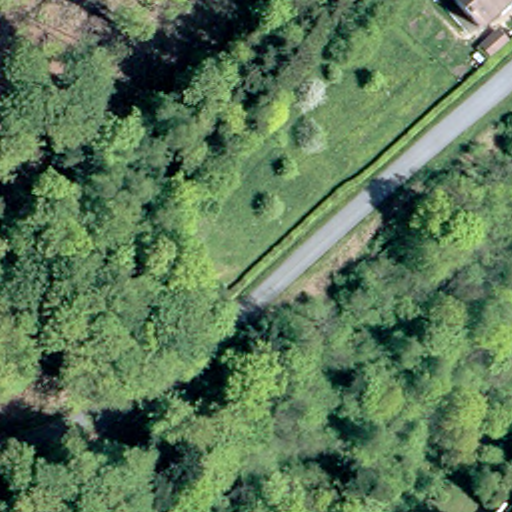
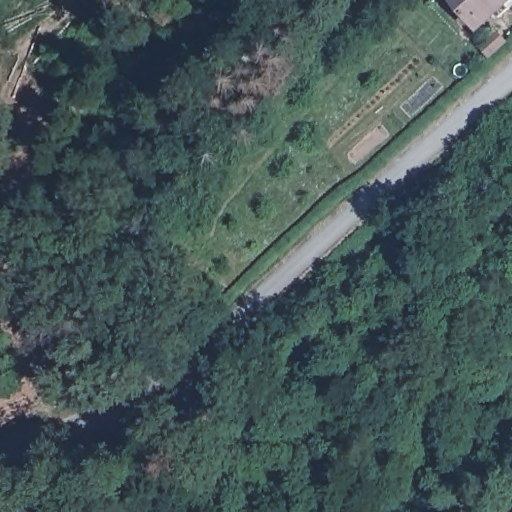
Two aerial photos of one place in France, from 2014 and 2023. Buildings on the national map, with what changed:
unchanged [(512,1),(483,29),(456,0),(512,0),(512,1)]

